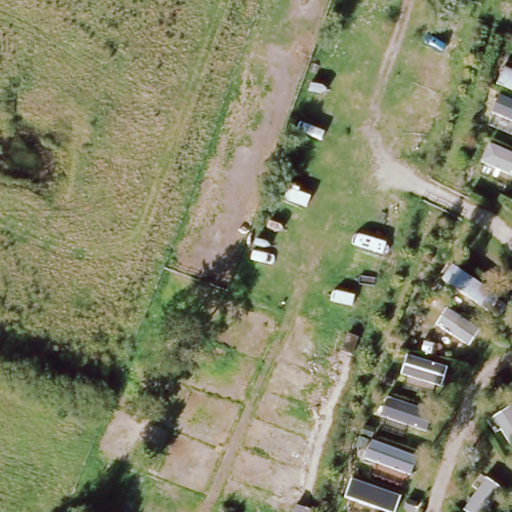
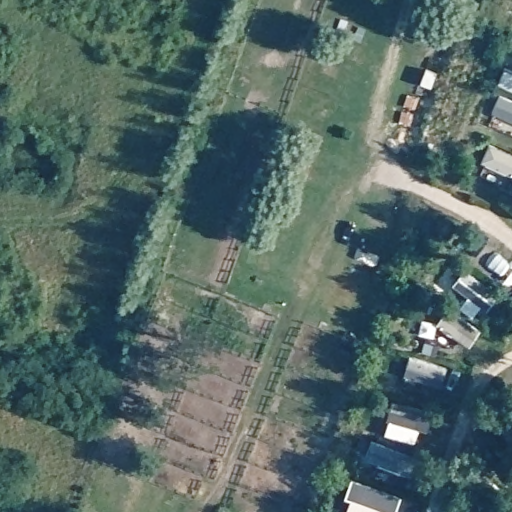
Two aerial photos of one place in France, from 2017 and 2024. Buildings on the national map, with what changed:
unchanged [(301,509),(309,512),(300,512),(301,509)]

